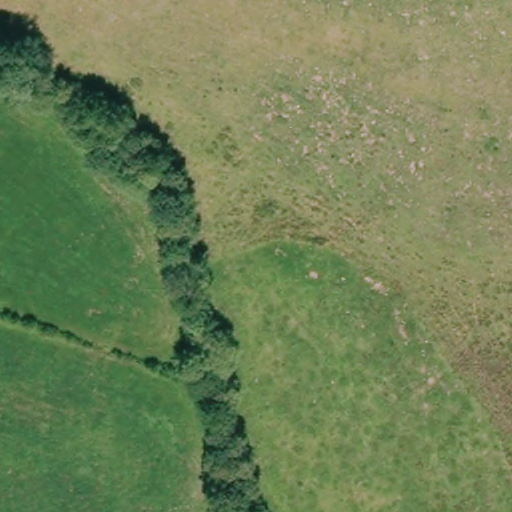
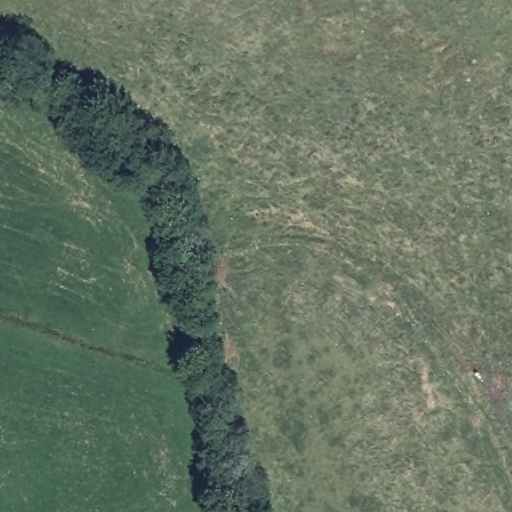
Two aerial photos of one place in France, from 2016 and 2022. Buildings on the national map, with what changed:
[]

